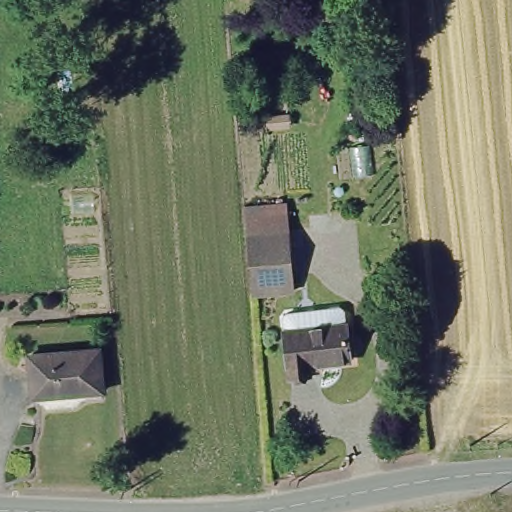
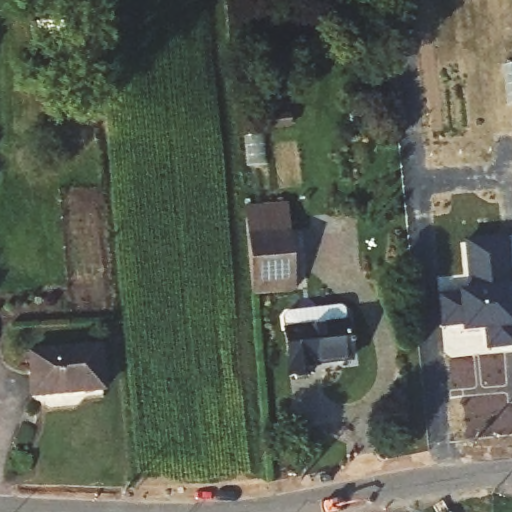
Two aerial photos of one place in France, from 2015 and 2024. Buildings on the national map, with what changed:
unchanged [(238,215),(288,212),(295,287),(245,292),(238,217),(238,215)]
new [(438,296),(457,295),(466,293),(464,242),(512,238),(512,272),(509,272),(511,290),(512,303),(512,349),(486,352),(483,332),(461,335),(461,328),(440,330),(438,296)]
unchanged [(348,321),(351,357),(313,362),(313,381),(287,382),(284,329),(348,321)]
unchanged [(94,344),(99,390),(33,396),(28,351),(94,344)]

